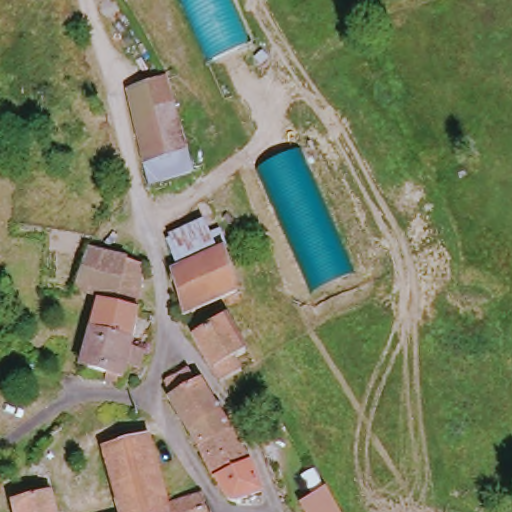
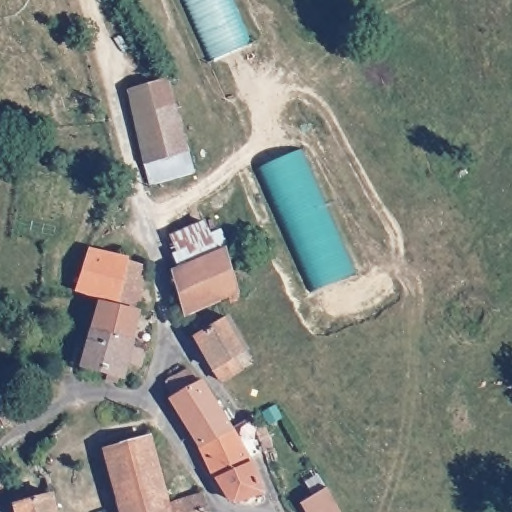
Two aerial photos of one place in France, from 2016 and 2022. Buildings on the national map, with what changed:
unchanged [(232,0),(255,49),(212,68),(182,0),(232,0)]
unchanged [(159,175),(152,156),(146,158),(144,150),(139,131),(127,88),(163,78),(182,147),(188,166),(159,175)]
unchanged [(352,275),(313,290),(259,167),(298,150),(352,275)]
unchanged [(176,242),(205,227),(219,259),(189,272),(176,242)]
unchanged [(81,291),(86,253),(126,258),(141,260),(141,262),(139,300),(117,296),(81,291)]
unchanged [(185,320),(172,280),(189,272),(219,259),(231,253),(234,298),(218,305),(185,320)]
unchanged [(96,299),(116,302),(139,306),(132,343),(88,334),(96,299)]
unchanged [(245,355),(235,363),(241,374),(222,387),(219,382),(197,344),(227,321),(245,355)]
unchanged [(88,334),(132,343),(143,344),(141,361),(127,359),(124,375),(82,367),(88,334)]
unchanged [(237,508),(224,497),(197,446),(185,426),(171,399),(174,398),(168,386),(189,372),(196,384),(203,380),(219,410),(228,429),(262,495),(237,508)]
unchanged [(102,454),(147,439),(166,506),(204,494),(208,512),(119,512),(102,454)]
unchanged [(4,498),(0,499),(0,482),(7,490),(4,498)]
unchanged [(302,505),(326,488),(340,512),(305,512),(302,505)]
unchanged [(12,506),(48,495),(51,512),(13,512),(12,506)]

